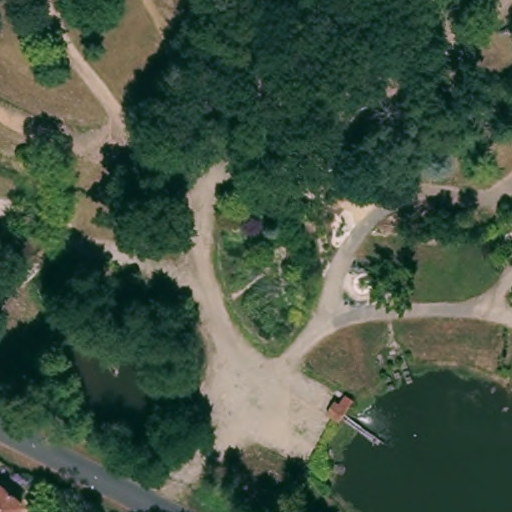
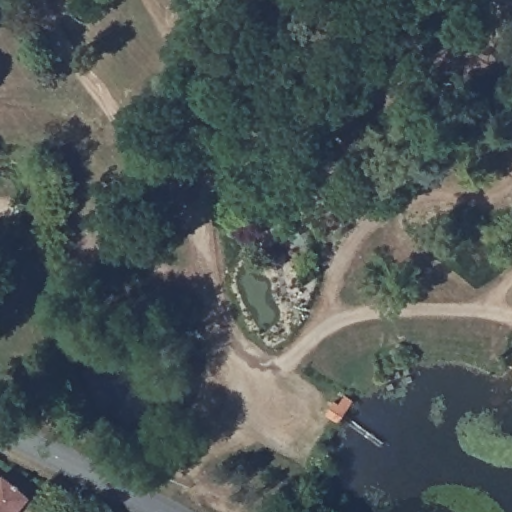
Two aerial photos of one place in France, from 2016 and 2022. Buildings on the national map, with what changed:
unchanged [(17,504),(11,512),(0,512),(0,491),(17,504)]

